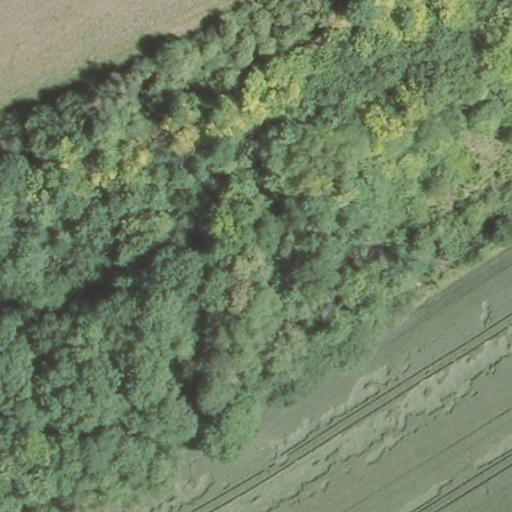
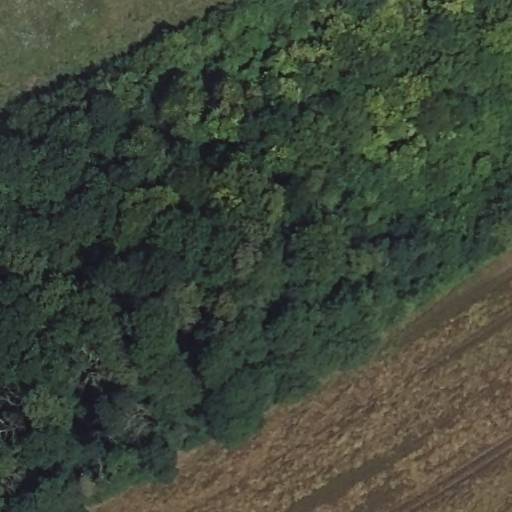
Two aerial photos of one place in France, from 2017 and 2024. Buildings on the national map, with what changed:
unchanged [(260,405),(226,427),(216,408),(250,386),(260,405)]

